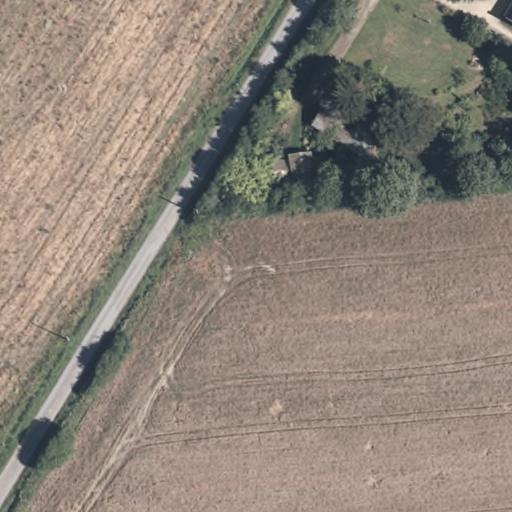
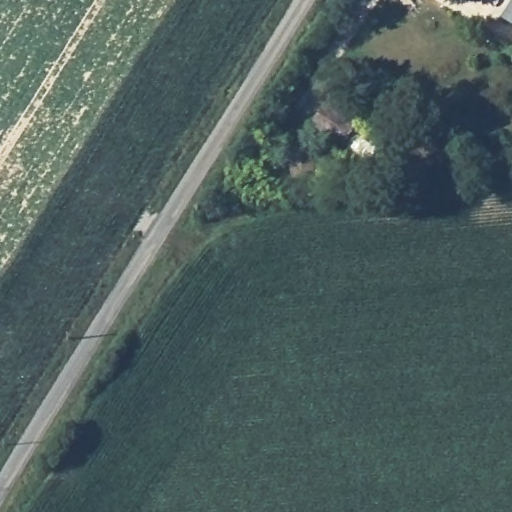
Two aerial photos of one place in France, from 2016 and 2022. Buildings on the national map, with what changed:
unchanged [(512,21),(506,18),(512,8),(512,21)]
unchanged [(342,122),(373,141),(360,161),(342,150),(330,141),(342,122)]
unchanged [(312,158),(313,196),(279,199),(277,160),(312,158)]

